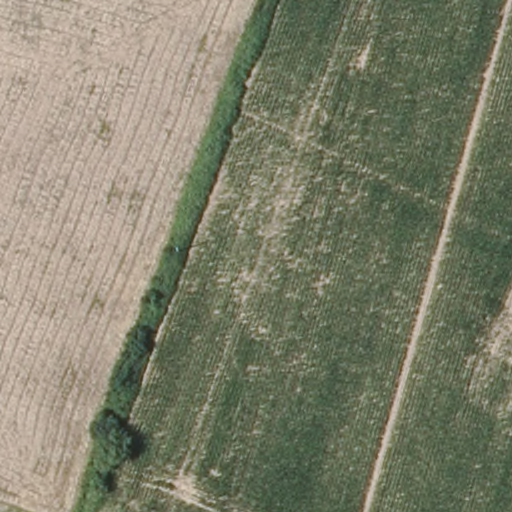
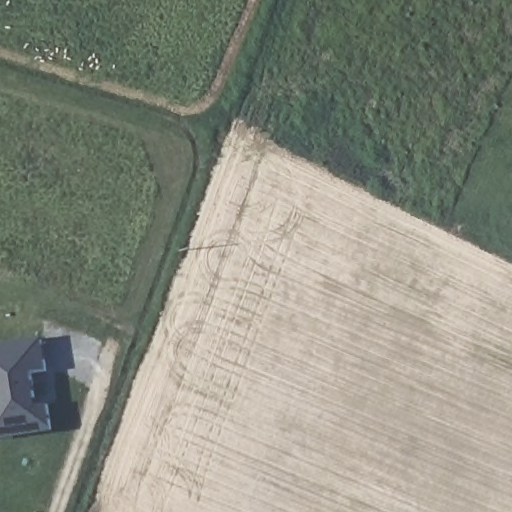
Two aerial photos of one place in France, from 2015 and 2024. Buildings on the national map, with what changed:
new [(48,373),(34,375),(37,400),(32,400),(33,409),(50,407),(54,432),(0,440),(0,414),(2,414),(0,395),(0,348),(16,346),(44,342),(48,373)]

